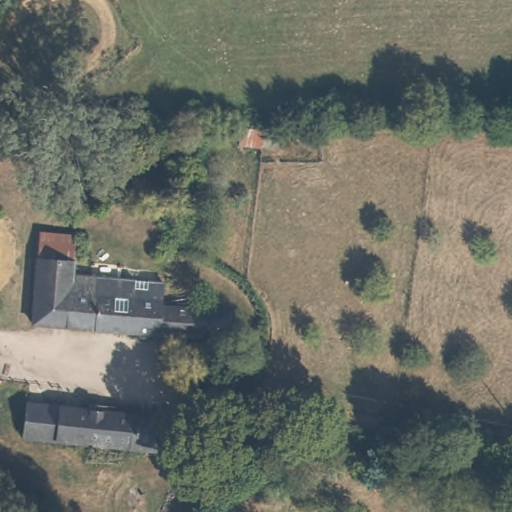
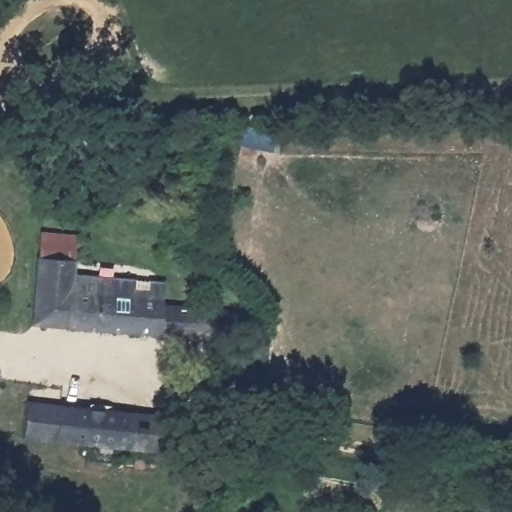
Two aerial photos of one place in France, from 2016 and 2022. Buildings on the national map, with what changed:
unchanged [(240,130),(266,134),(263,153),(236,150),(240,130)]
unchanged [(84,143),(84,156),(66,157),(65,144),(84,143)]
unchanged [(232,331),(206,331),(205,340),(29,328),(33,262),(35,237),(71,239),(71,263),(71,285),(87,286),(88,282),(166,287),(165,309),(177,310),(232,313),(232,331)]
unchanged [(24,413),(162,422),(156,455),(22,443),(24,413)]

